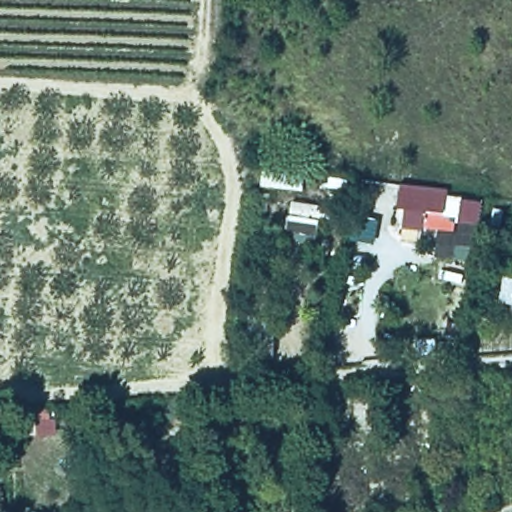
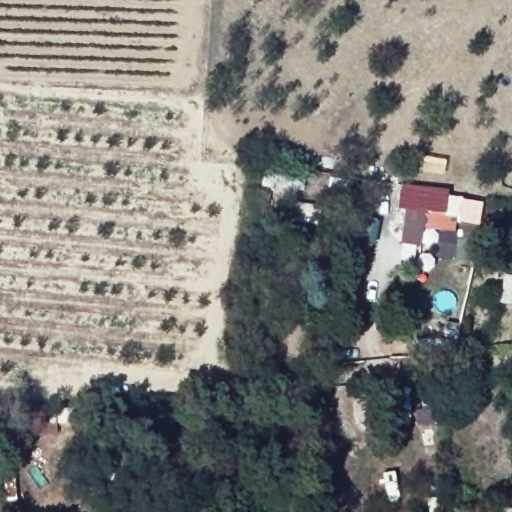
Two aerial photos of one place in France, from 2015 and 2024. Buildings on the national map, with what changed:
unchanged [(430,198),(428,217),(388,214),(390,194),(430,198)]

